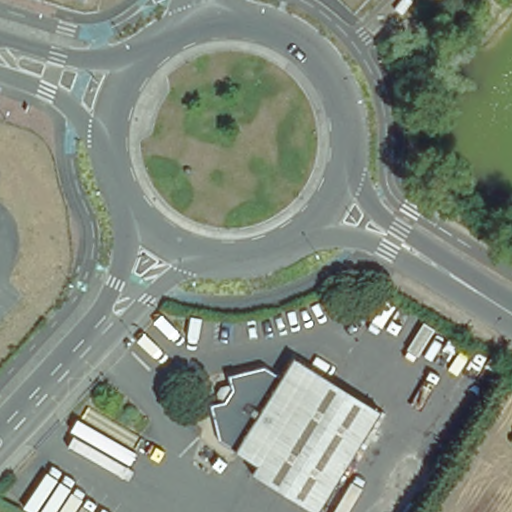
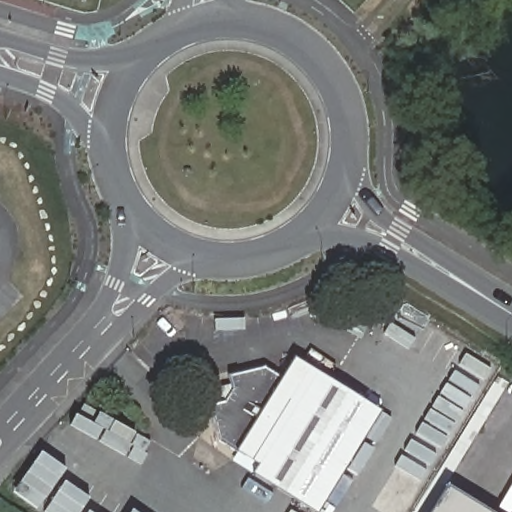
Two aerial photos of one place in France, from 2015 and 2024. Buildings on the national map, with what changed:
unchanged [(254,471),(258,464),(219,441),(210,406),(223,402),(221,392),(226,384),(235,383),(233,372),(272,365),(287,375),(299,356),(383,408),(320,511),(254,471)]
new [(446,485),(491,512),(430,512),(446,485)]

